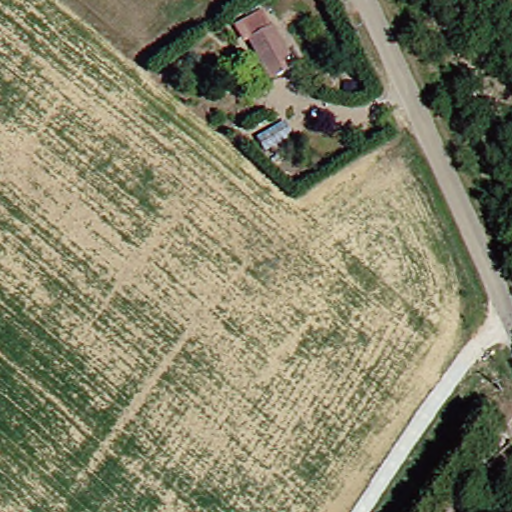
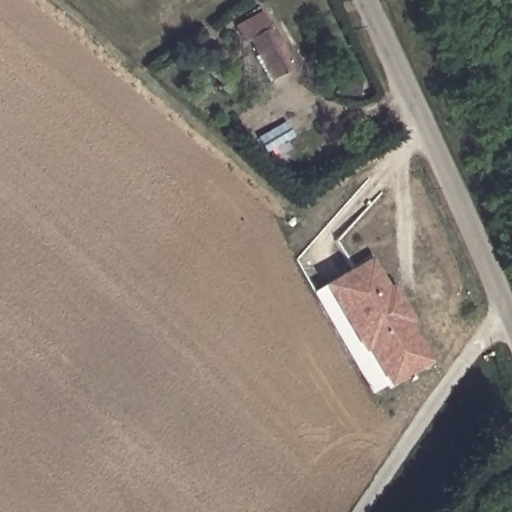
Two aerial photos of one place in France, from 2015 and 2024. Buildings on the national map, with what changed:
unchanged [(244,26),(264,16),(277,40),(286,57),(266,67),(262,59),(244,26)]
unchanged [(286,122),(294,136),(264,152),(255,137),(286,122)]
new [(371,254),(388,284),(386,285),(395,300),(402,296),(412,315),(408,317),(431,355),(393,377),(371,338),(366,341),(329,278),(371,254)]
new [(329,278),(366,341),(371,338),(393,377),(375,387),(315,286),(329,278)]

